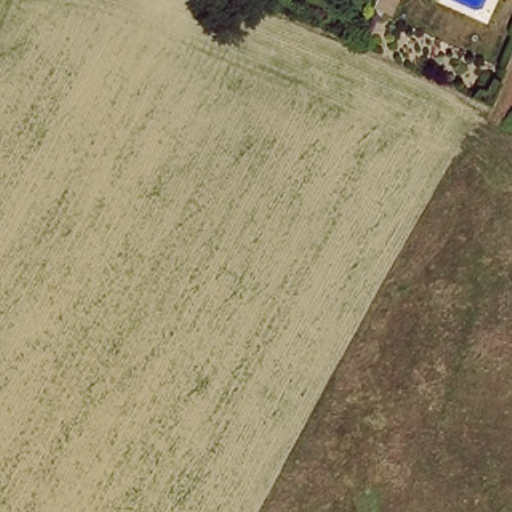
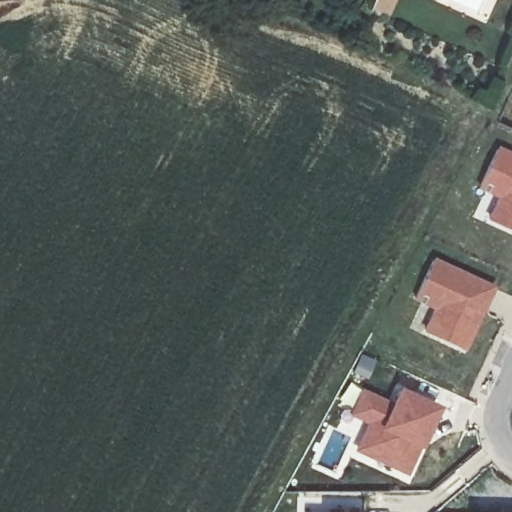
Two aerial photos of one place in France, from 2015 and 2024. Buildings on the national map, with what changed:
unchanged [(368,11),(372,0),(391,0),(384,17),(368,11)]
demolished [(438,0),(499,0),(491,19),(438,0)]
new [(512,152),(512,230),(487,219),(497,197),(475,187),(495,145),(512,152)]
new [(494,286),(465,351),(423,332),(433,310),(413,300),(434,258),(494,286)]
new [(390,401),(397,386),(440,405),(419,447),(407,475),(352,450),(365,423),(348,415),(360,389),(390,401)]
new [(491,512),(469,512),(470,511),(491,512)]

